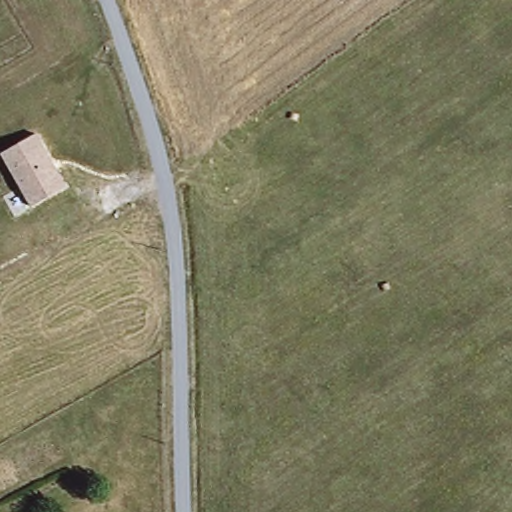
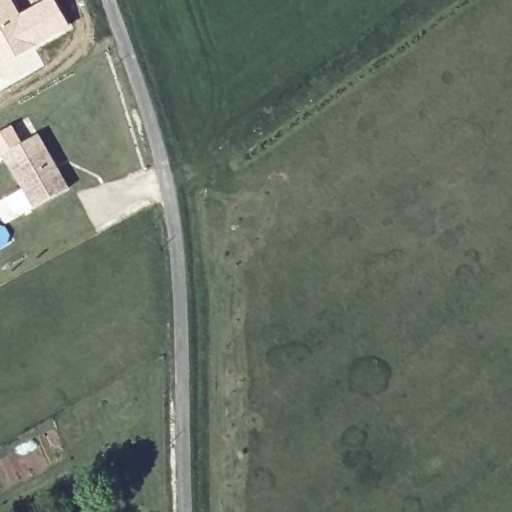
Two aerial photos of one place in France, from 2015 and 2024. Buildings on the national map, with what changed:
new [(43,0),(56,0),(73,28),(35,49),(44,65),(0,90),(0,0),(13,0),(20,12),(43,0)]
unchanged [(68,191),(33,211),(4,156),(39,137),(68,191)]

